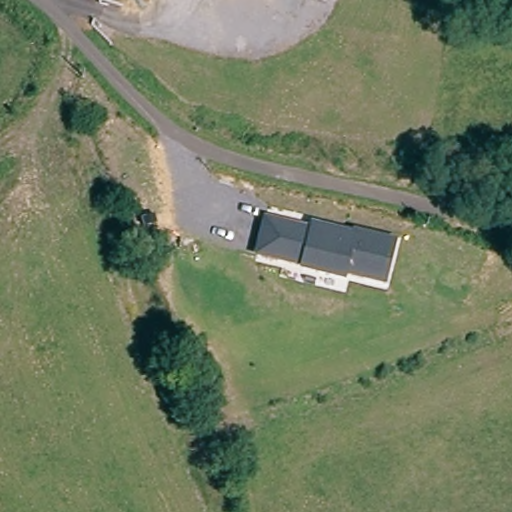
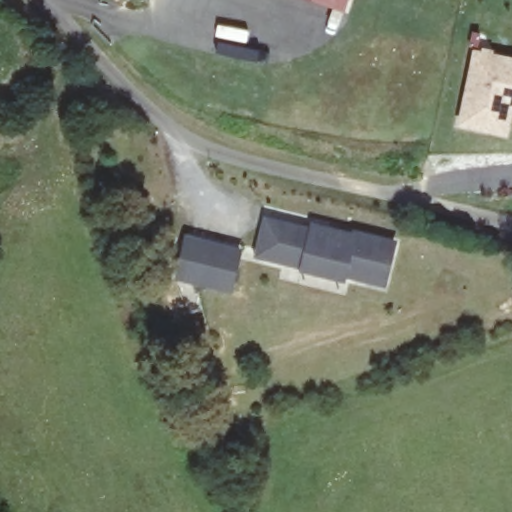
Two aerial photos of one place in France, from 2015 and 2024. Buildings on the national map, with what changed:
new [(345,11),(313,0),(349,0),(345,11)]
new [(458,123),(474,50),(512,57),(512,118),(509,135),(458,123)]
unchanged [(264,215),(310,224),(311,221),(353,231),(353,229),(396,241),(389,279),(386,285),(346,275),(345,279),(254,255),(264,215)]
new [(171,276),(182,233),(245,250),(233,293),(171,276)]

